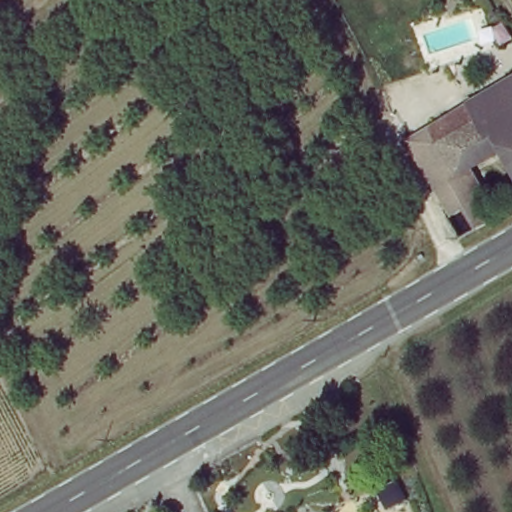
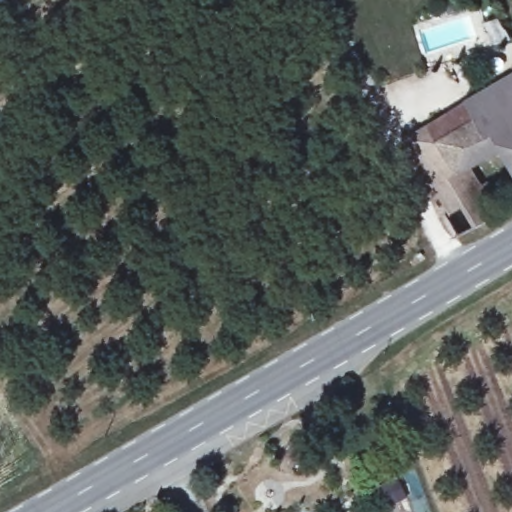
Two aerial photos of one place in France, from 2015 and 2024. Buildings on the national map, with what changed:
unchanged [(500,209),(490,215),(471,226),(457,203),(446,210),(402,137),(512,73),(512,158),(504,163),(497,152),(465,172),(482,201),(492,195),(500,209)]

